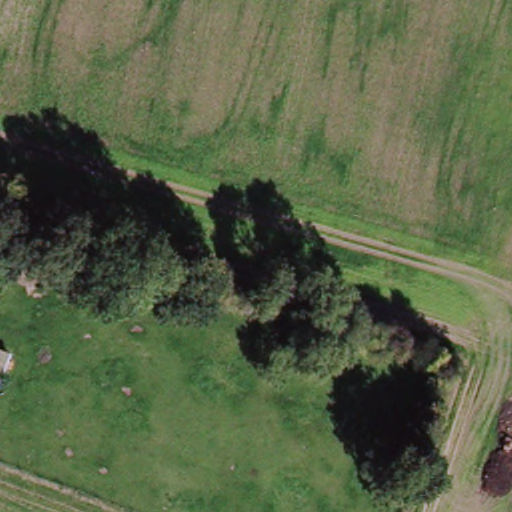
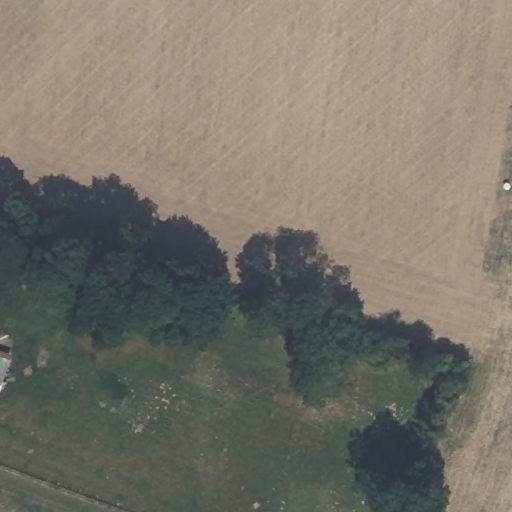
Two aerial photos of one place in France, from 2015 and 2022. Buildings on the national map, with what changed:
unchanged [(2,381),(0,380),(0,355),(10,358),(2,381)]

